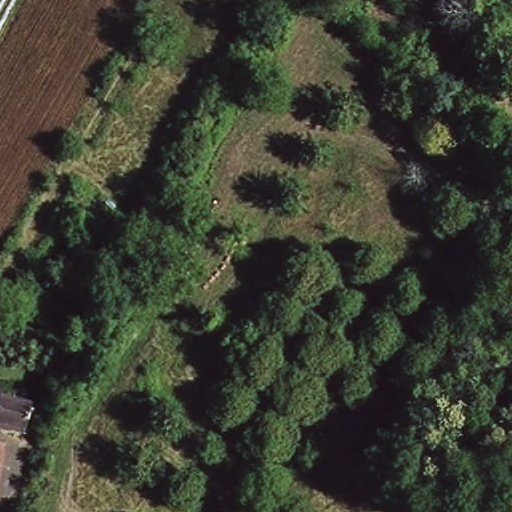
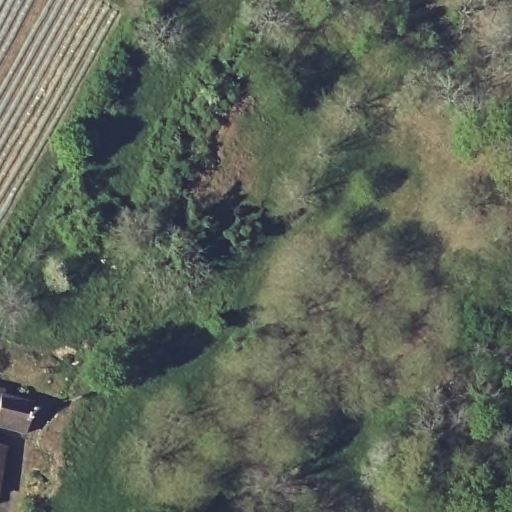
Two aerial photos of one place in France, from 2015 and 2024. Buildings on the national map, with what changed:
unchanged [(30,403),(26,433),(0,428),(0,398),(30,403)]
unchanged [(2,443),(0,461),(0,442),(2,443)]

